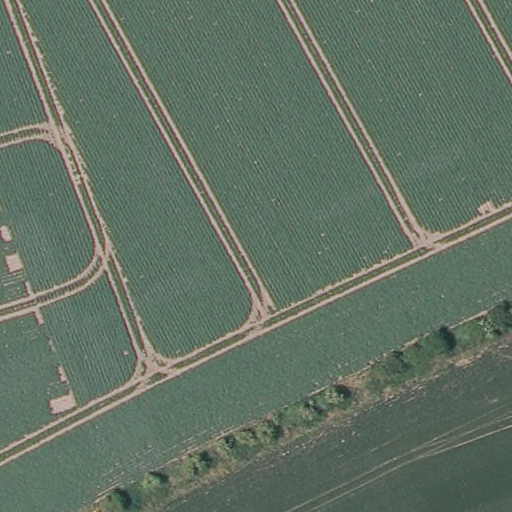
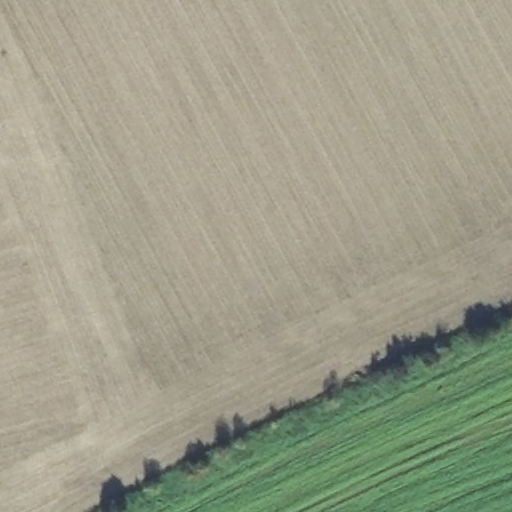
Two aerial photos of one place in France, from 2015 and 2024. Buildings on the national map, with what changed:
[]

